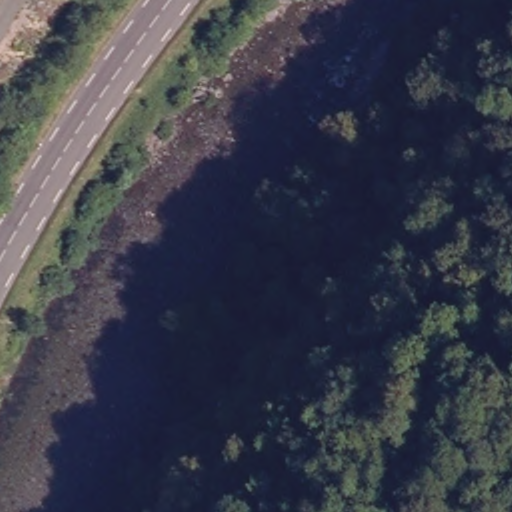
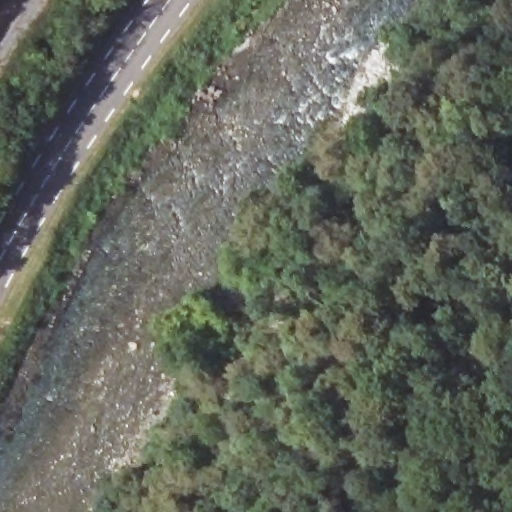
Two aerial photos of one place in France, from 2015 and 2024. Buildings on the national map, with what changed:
[]

